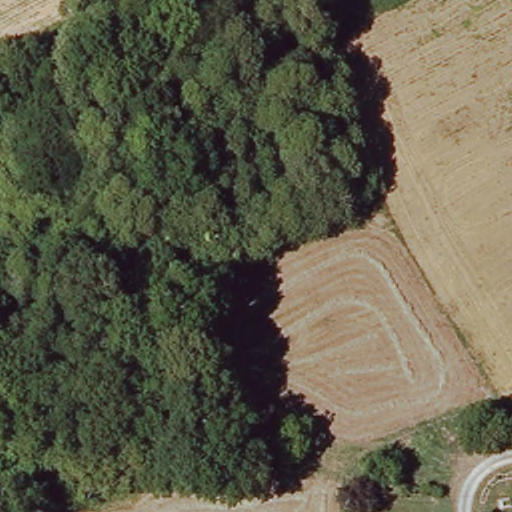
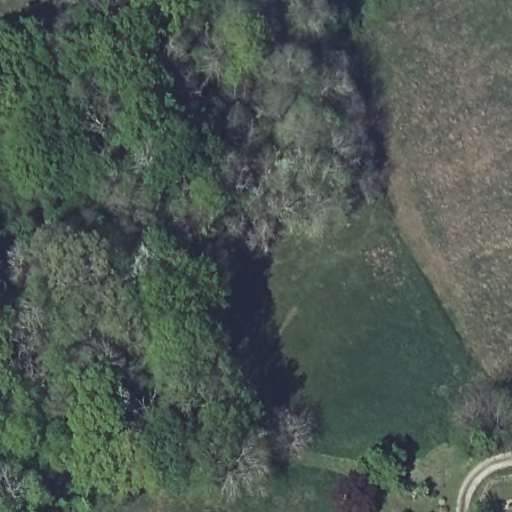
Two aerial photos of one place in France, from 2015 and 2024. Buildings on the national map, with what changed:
[]

